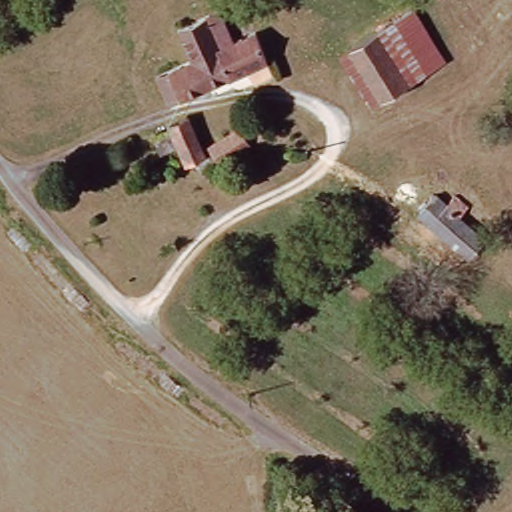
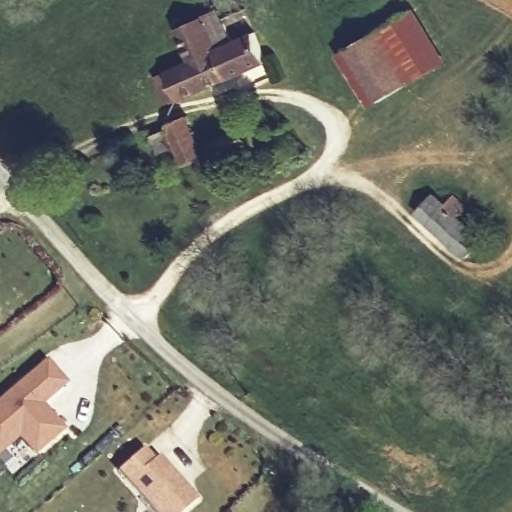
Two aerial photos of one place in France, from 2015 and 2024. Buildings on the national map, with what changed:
unchanged [(413,7),(444,57),(382,95),(371,102),(340,51),(352,44),(413,7)]
unchanged [(265,64),(177,102),(164,72),(187,61),(174,31),(203,18),(207,25),(220,20),(230,45),(252,36),(265,64)]
unchanged [(237,128),(251,146),(221,168),(218,165),(201,174),(198,165),(188,168),(180,149),(161,155),(155,137),(174,130),(172,124),(190,119),(201,149),(237,128)]
unchanged [(469,215),(460,224),(485,246),(470,263),(413,216),(428,198),(443,211),(454,200),(469,215)]
new [(33,456),(17,438),(0,454),(0,401),(45,361),(65,383),(40,406),(48,415),(63,430),(33,456)]
new [(153,460),(158,456),(197,499),(183,512),(153,512),(116,471),(143,448),(153,460)]

